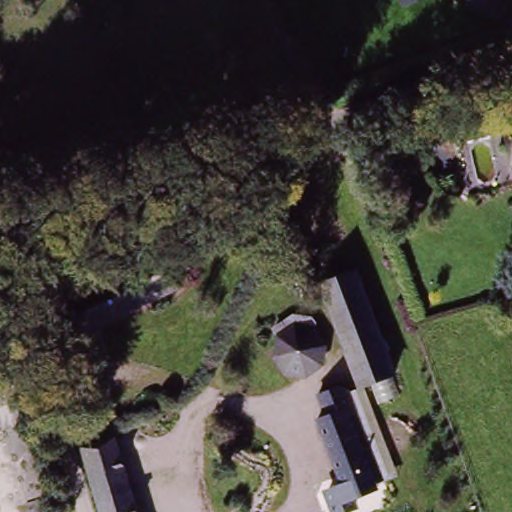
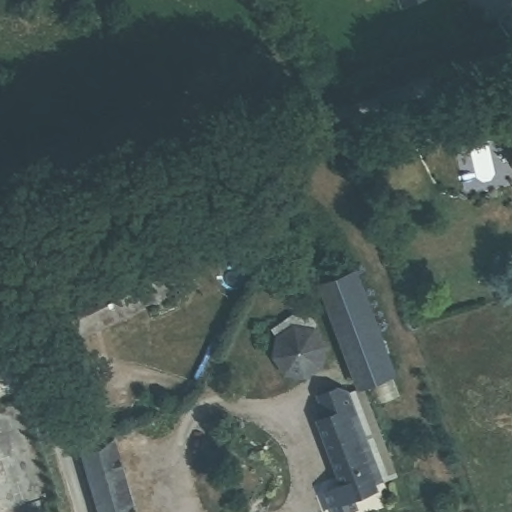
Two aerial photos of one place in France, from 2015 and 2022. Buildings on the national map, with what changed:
unchanged [(400,9),(398,0),(421,0),(400,9)]
unchanged [(512,128),(512,157),(505,130),(512,128)]
unchanged [(290,224),(295,222),(299,221),(305,236),(300,237),(295,240),(290,224)]
unchanged [(167,256),(181,284),(72,335),(59,306),(167,256)]
unchanged [(356,272),(395,373),(371,383),(361,387),(322,285),(356,272)]
unchanged [(325,363),(310,376),(301,377),(289,372),(276,360),(278,336),(275,328),(296,317),(315,320),(316,331),(327,345),(325,363)]
unchanged [(350,407),(370,457),(343,468),(322,418),(350,407)]
unchanged [(134,512),(98,512),(76,444),(109,433),(134,512)]
unchanged [(355,496),(358,507),(348,512),(339,512),(333,506),(329,507),(317,485),(340,474),(376,462),(388,481),(355,496)]

